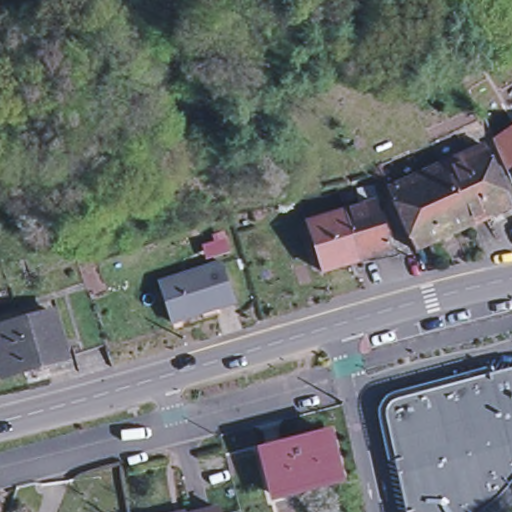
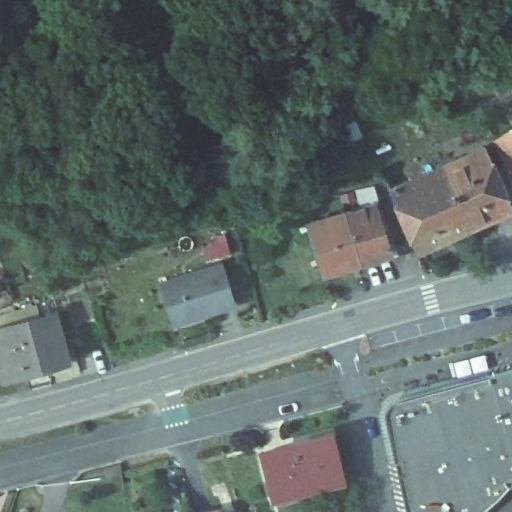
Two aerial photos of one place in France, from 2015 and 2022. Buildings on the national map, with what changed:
unchanged [(512,164),(506,168),(493,141),(512,129),(512,164)]
unchanged [(512,203),(512,208),(471,227),(443,165),(485,146),(512,203)]
unchanged [(443,165),(471,227),(416,251),(390,189),(443,165)]
unchanged [(341,206),(321,210),(318,197),(339,193),(341,206)]
unchanged [(376,204),(391,252),(361,261),(346,213),(376,204)]
unchanged [(323,272),(308,224),(346,213),(361,261),(323,272)]
unchanged [(226,242),(229,257),(205,265),(201,250),(226,242)]
unchanged [(221,267),(234,308),(171,327),(158,287),(221,267)]
unchanged [(70,357),(8,377),(0,349),(0,330),(56,312),(70,357)]
unchanged [(398,458),(388,415),(388,412),(389,407),(393,405),(397,403),(488,381),(487,376),(512,369),(512,482),(509,486),(505,482),(499,490),(496,493),(492,497),(486,502),(482,506),(476,510),(473,512),(410,512),(409,511),(404,512),(393,460),(398,458)]
unchanged [(288,456),(286,446),(329,435),(339,480),(274,496),(266,461),(288,456)]
unchanged [(217,512),(209,512),(216,511),(217,512)]

